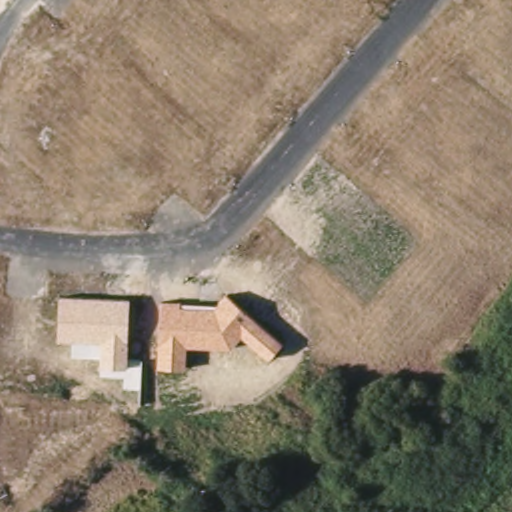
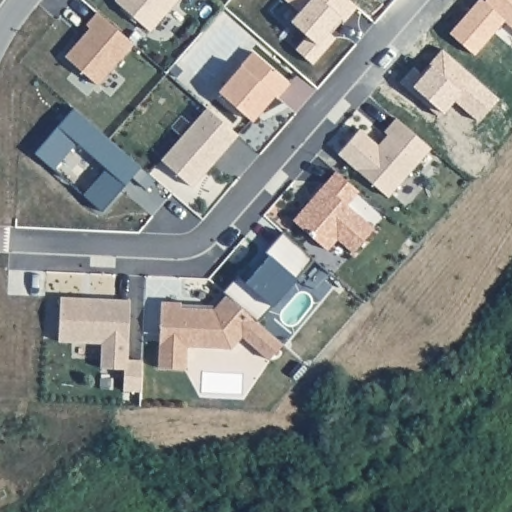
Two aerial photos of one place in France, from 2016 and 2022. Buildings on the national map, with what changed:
new [(114,0),(177,0),(150,31),(114,0)]
new [(356,6),(343,21),(340,17),(327,31),(335,38),(312,63),(295,49),(307,35),(290,21),(299,11),(286,0),(349,0),(356,6)]
new [(483,1),(484,0),(512,0),(512,28),(503,20),(473,54),(449,33),(477,0),(481,0),(487,4),(483,1)]
new [(90,28),(85,24),(97,11),(134,43),(97,85),(65,56),(90,28)]
new [(253,52),(289,83),(276,97),(273,95),(251,120),(218,91),(253,52)]
new [(101,211),(82,195),(106,168),(76,141),(52,168),(34,152),(74,107),(141,166),(132,176),(125,184),(101,211)]
new [(206,107),(237,134),(192,187),(161,160),(206,107)]
new [(378,145),(387,134),(384,131),(396,118),(430,148),(387,196),(338,153),(359,129),(378,145)]
new [(335,171),(358,191),(346,204),(373,228),(352,252),(336,238),(326,250),(295,222),(292,220),(309,201),(335,171)]
new [(312,258),(296,278),(272,307),(258,320),(227,292),(239,275),(246,282),(270,256),(266,251),(283,233),(312,258)]
unchanged [(217,303),(227,292),(283,344),(269,361),(242,339),(231,349),(187,347),(186,370),(156,368),(160,299),(217,303)]
unchanged [(131,298),(130,369),(100,368),(100,342),(57,341),(59,294),(131,298)]

